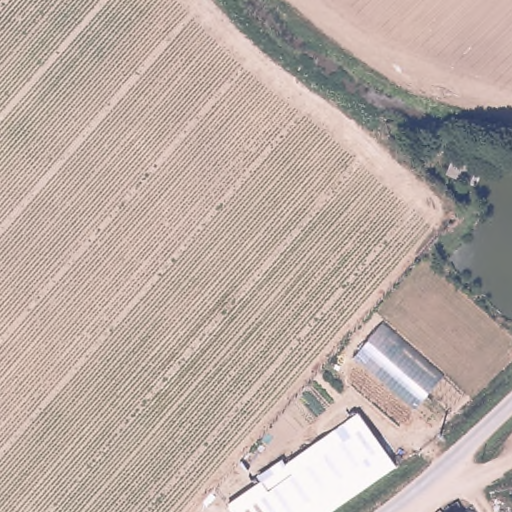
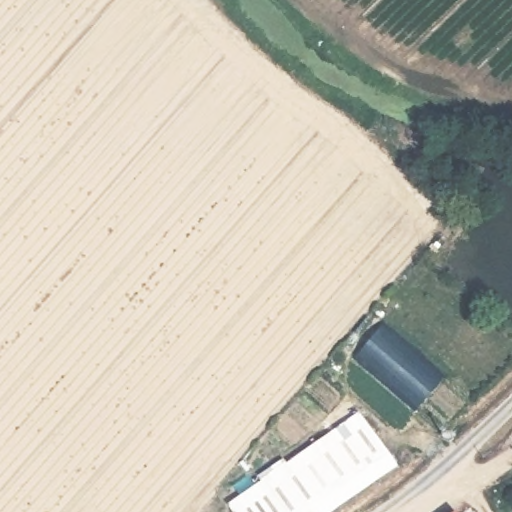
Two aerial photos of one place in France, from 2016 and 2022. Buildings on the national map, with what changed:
unchanged [(335,512),(233,512),(226,505),(260,483),(257,478),(279,462),(284,467),(357,416),(397,470),(335,512)]

